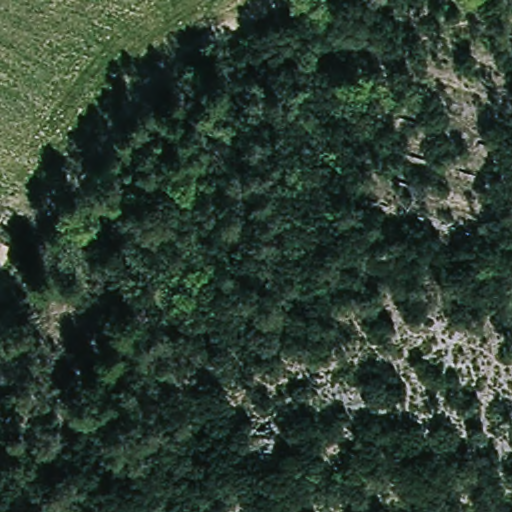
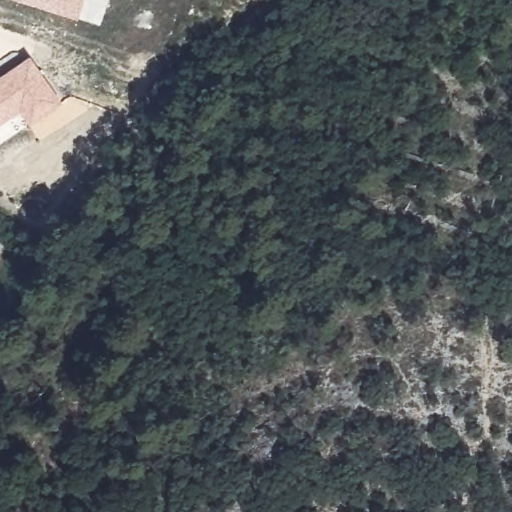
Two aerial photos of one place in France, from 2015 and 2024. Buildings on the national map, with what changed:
new [(19,0),(83,0),(77,19),(19,0)]
new [(28,55),(62,102),(29,126),(20,111),(0,124),(0,75),(28,55)]

